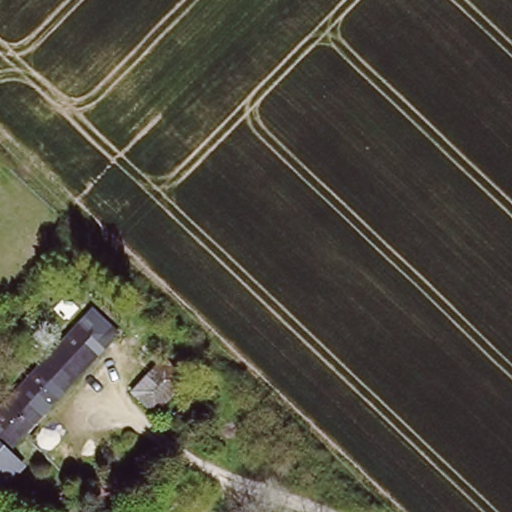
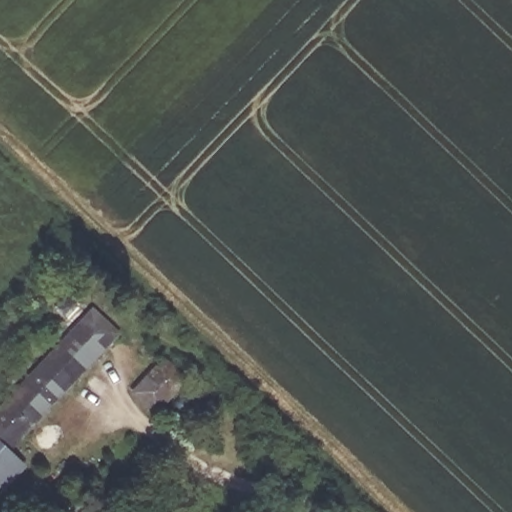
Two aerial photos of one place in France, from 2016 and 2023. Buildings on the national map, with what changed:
unchanged [(115,332),(64,386),(3,451),(22,469),(2,491),(0,490),(0,403),(90,308),(115,332)]
unchanged [(182,371),(152,403),(134,386),(162,353),(182,371)]

